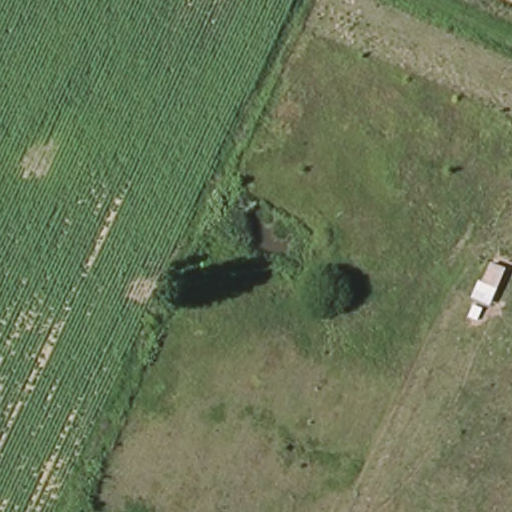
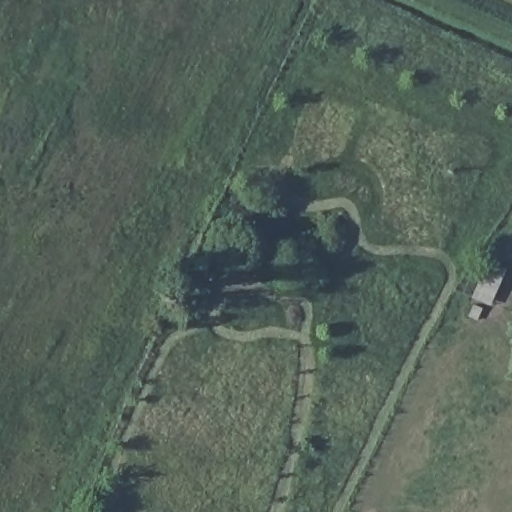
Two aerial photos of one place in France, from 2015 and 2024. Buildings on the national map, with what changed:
[]

